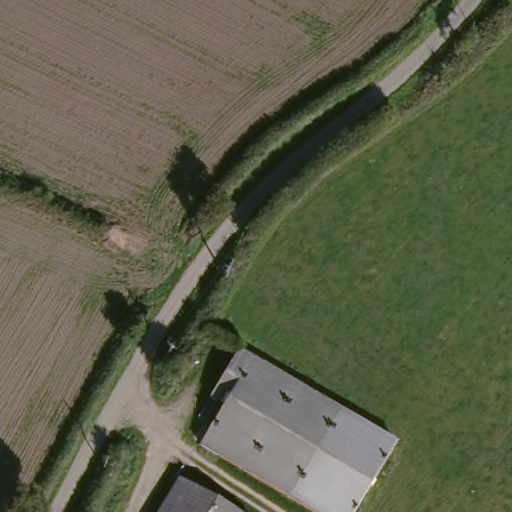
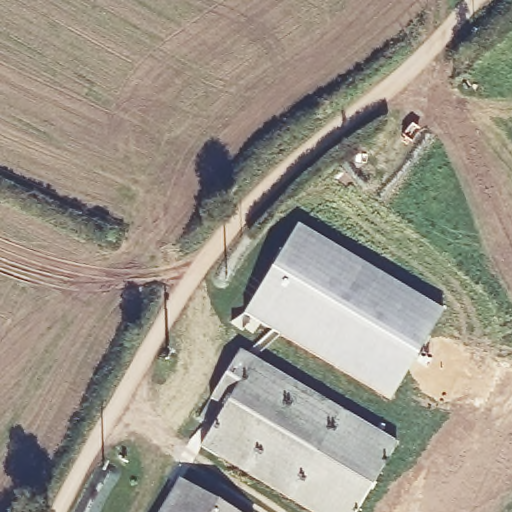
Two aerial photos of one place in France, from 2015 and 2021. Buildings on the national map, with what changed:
new [(298,223),(443,311),(389,399),(244,312),(298,223)]
unchanged [(224,407),(211,400),(239,349),(341,408),(336,416),(286,499),(199,446),(224,407)]
unchanged [(354,512),(308,512),(286,499),(336,416),(341,408),(397,441),(354,512)]
unchanged [(156,512),(178,479),(228,512),(156,512)]

